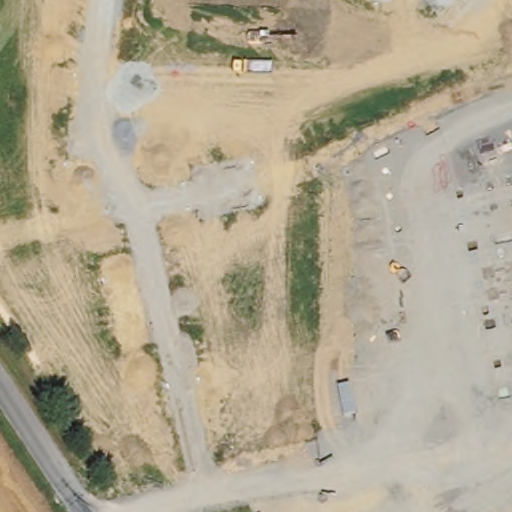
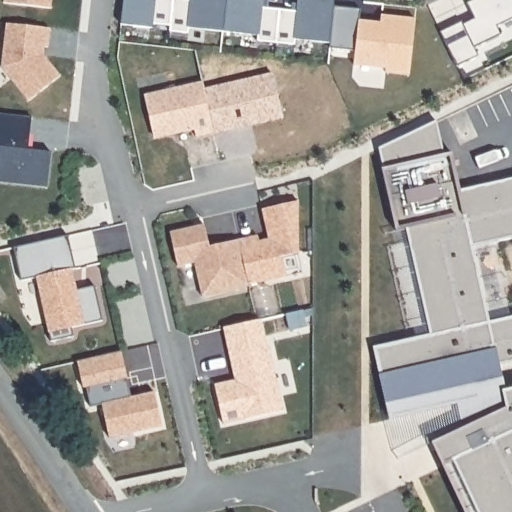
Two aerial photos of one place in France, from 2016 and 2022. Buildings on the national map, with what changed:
new [(51,8),(4,4),(5,0),(52,0),(51,8)]
new [(262,6),(299,10),(300,0),(336,0),(332,43),(297,39),(297,45),(259,40),(259,34),(190,29),(189,33),(171,31),(172,25),(152,24),(152,28),(122,24),(125,0),(263,0),(262,6)]
new [(465,23),(476,18),(469,2),(474,0),(512,0),(512,21),(500,26),(504,35),(477,47),(481,56),(459,66),(442,31),(464,21),(465,23)]
new [(51,27),(49,44),(44,42),(42,53),(59,76),(29,100),(2,67),(6,23),(51,27)]
new [(215,132),(197,137),(195,129),(155,139),(144,95),(203,80),(215,132)]
new [(32,116),(28,147),(51,151),(48,184),(0,177),(0,112),(32,116)]
new [(453,153),(459,188),(512,177),(512,236),(471,244),(489,321),(512,316),(512,360),(500,363),(505,381),(495,383),(500,391),(512,389),(512,512),(465,512),(432,443),(466,426),(456,404),(390,417),(380,373),(374,347),(430,333),(407,226),(396,229),(383,167),(379,147),(437,121),(446,154),(453,153)]
new [(262,247),(263,253),(273,251),(266,221),(303,213),(303,265),(286,269),(290,288),(253,296),(243,251),(262,247)]
new [(77,267),(73,268),(76,280),(78,288),(96,284),(104,319),(73,326),(75,335),(53,340),(38,276),(22,279),(15,246),(70,234),(77,267)]
new [(213,258),(220,256),(243,251),(253,296),(253,298),(207,308),(199,274),(182,278),(174,244),(208,236),(213,258)]
new [(231,356),(225,327),(264,318),(268,346),(270,346),(284,410),(225,423),(216,384),(236,379),(231,356)]
new [(131,395),(154,390),(161,425),(108,436),(101,405),(89,407),(86,387),(82,387),(77,362),(122,352),(131,395)]

